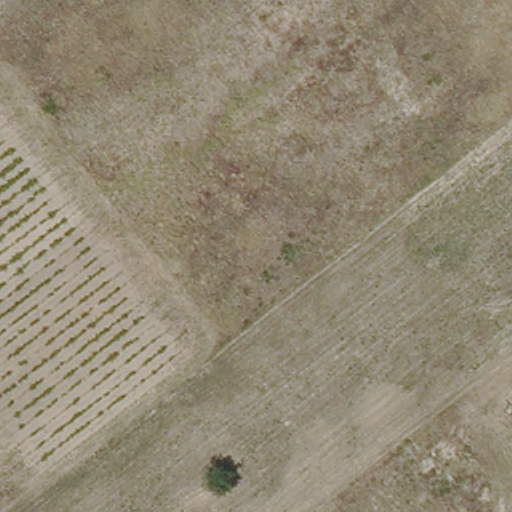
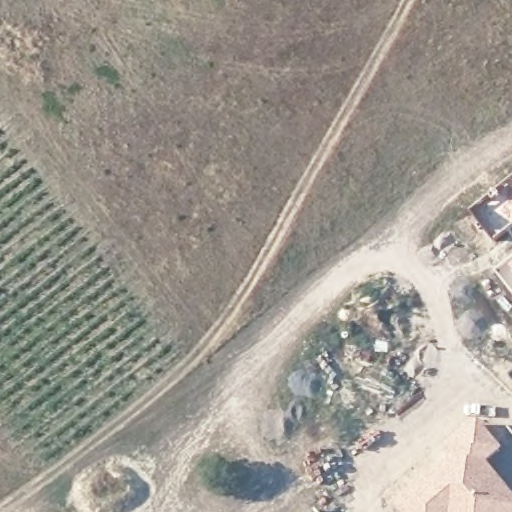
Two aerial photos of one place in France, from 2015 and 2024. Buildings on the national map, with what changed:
new [(512,270),(507,264),(512,260),(512,270)]
new [(445,450),(479,421),(504,452),(489,465),(512,495),(512,512),(396,512),(394,508),(450,456),(445,450)]

